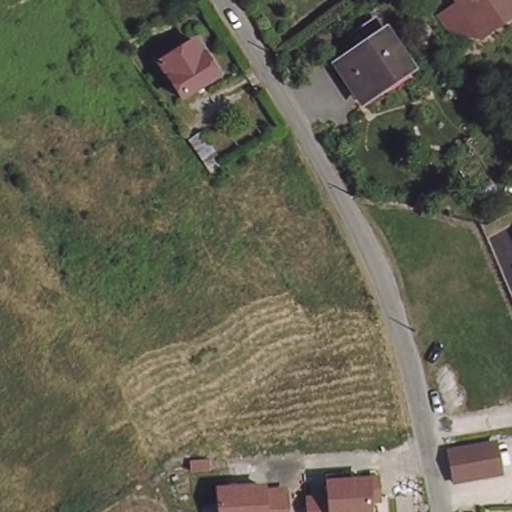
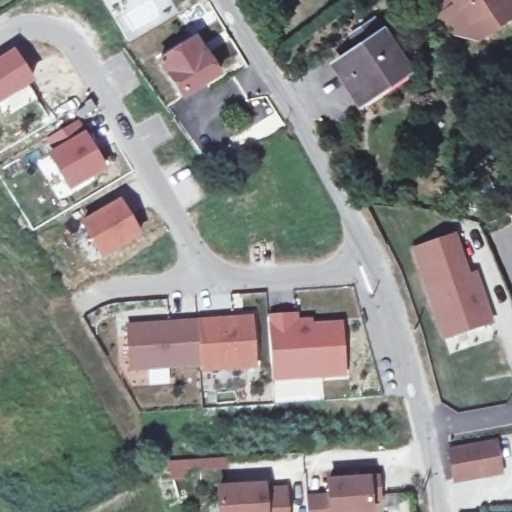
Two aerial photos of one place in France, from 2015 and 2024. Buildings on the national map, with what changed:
unchanged [(473,22),(458,0),(512,0),(512,14),(510,15),(481,35),(473,22)]
unchanged [(361,104),(358,99),(334,63),(355,49),(346,36),(371,19),(380,32),(405,67),(408,72),(361,104)]
unchanged [(213,79),(176,102),(153,67),(189,45),(198,60),(200,59),(213,79)]
new [(0,104),(0,59),(13,52),(35,82),(0,104)]
new [(75,122),(103,169),(70,189),(50,156),(55,152),(47,139),(75,122)]
unchanged [(205,162),(200,155),(190,142),(203,132),(218,153),(205,162)]
new [(119,202),(138,235),(101,257),(82,224),(119,202)]
new [(477,290),(483,288),(494,322),(450,337),(420,250),(460,237),(477,290)]
new [(295,316),(295,323),(310,322),(310,327),(340,325),(344,375),(272,380),(268,317),(285,317),(295,316)]
new [(251,320),(254,367),(200,371),(200,365),(197,323),(251,320)]
new [(197,323),(200,365),(138,368),(135,327),(197,323)]
unchanged [(497,442),(503,472),(498,472),(473,477),(457,481),(452,453),(451,451),(497,442)]
unchanged [(326,480),(375,476),(377,499),(368,500),(368,512),(304,512),(303,497),(327,496),(326,480)]
unchanged [(265,488),(286,487),(289,512),(218,512),(216,488),(264,483),(265,488)]

